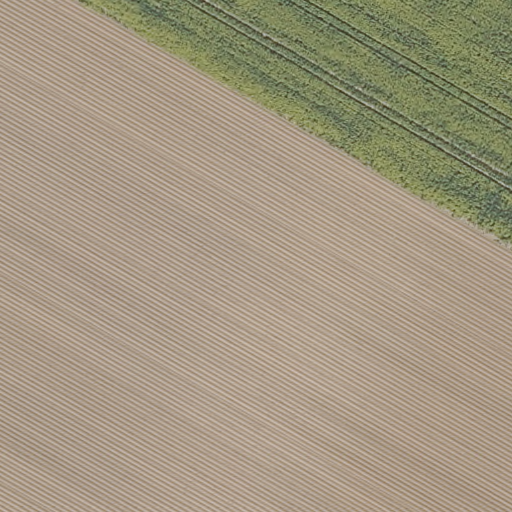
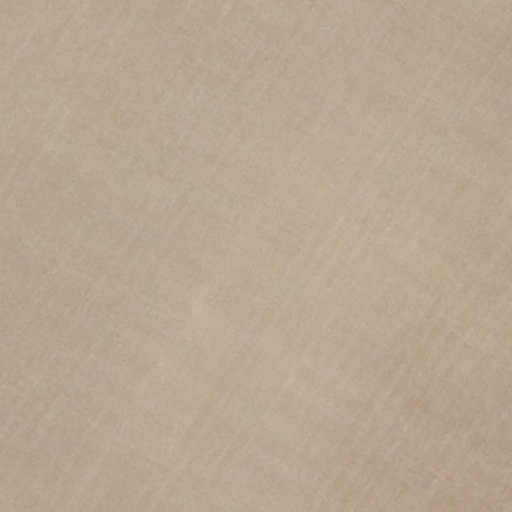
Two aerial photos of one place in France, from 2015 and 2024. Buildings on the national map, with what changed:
[]

